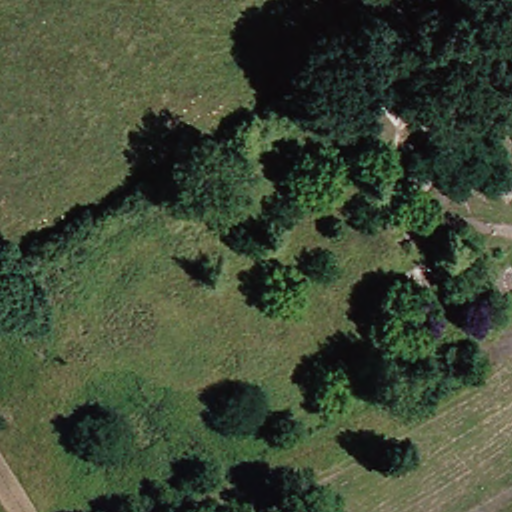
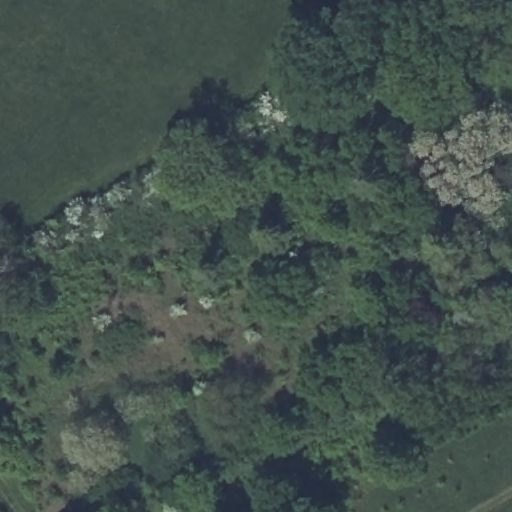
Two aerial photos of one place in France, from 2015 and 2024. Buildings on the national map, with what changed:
unchanged [(417,167),(441,146),(458,165),(433,187),(417,167)]
unchanged [(495,180),(512,165),(512,199),(495,180)]
unchanged [(446,278),(417,294),(405,272),(432,256),(446,278)]
unchanged [(512,261),(512,291),(500,298),(487,276),(512,261)]

